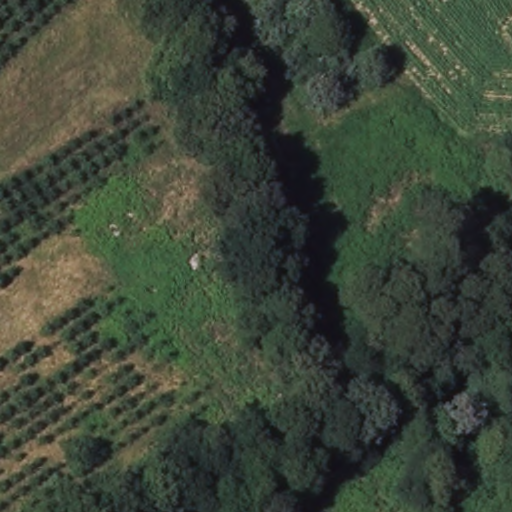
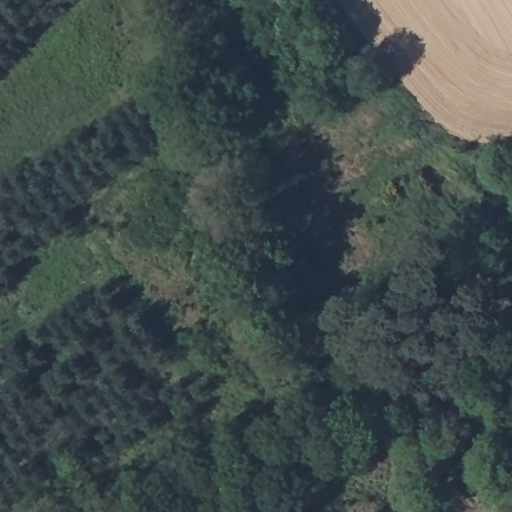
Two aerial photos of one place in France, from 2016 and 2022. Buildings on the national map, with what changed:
[]

